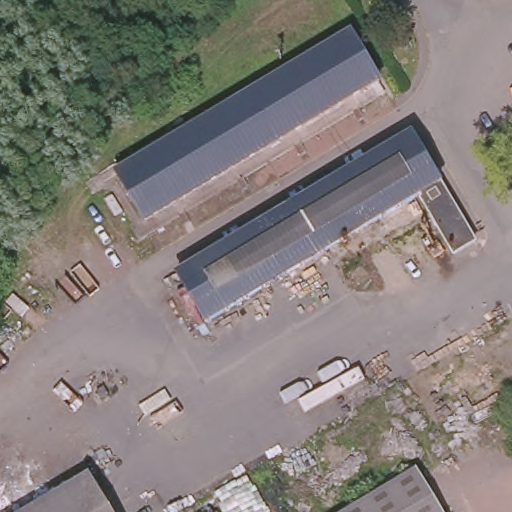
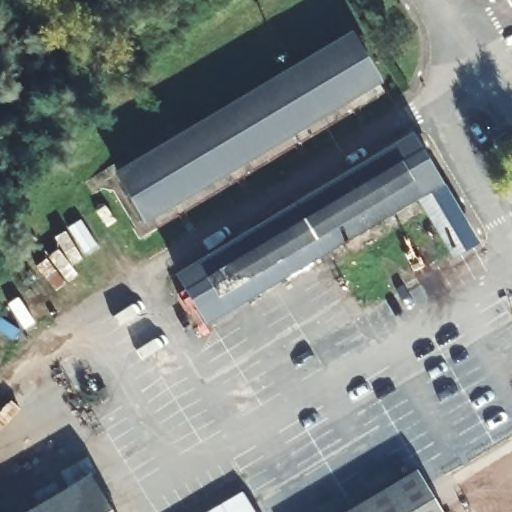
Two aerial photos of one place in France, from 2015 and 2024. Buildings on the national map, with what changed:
unchanged [(347,38),(373,84),(148,222),(122,177),(347,38)]
unchanged [(409,130),(472,239),(451,251),(416,194),(210,316),(183,269),(409,130)]
unchanged [(443,512),(344,512),(418,468),(443,512)]
unchanged [(24,512),(93,478),(109,512),(24,512)]
new [(208,512),(243,491),(255,512),(208,512)]

